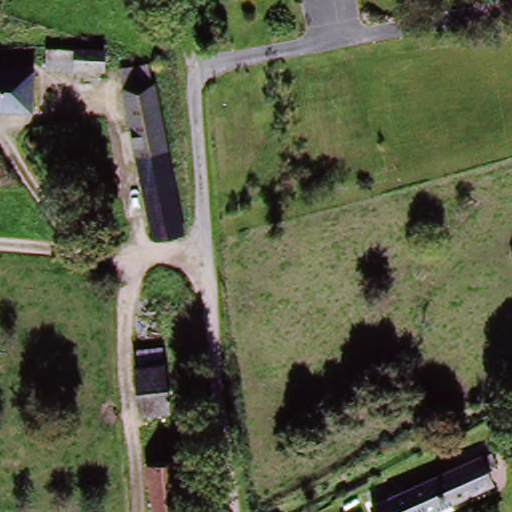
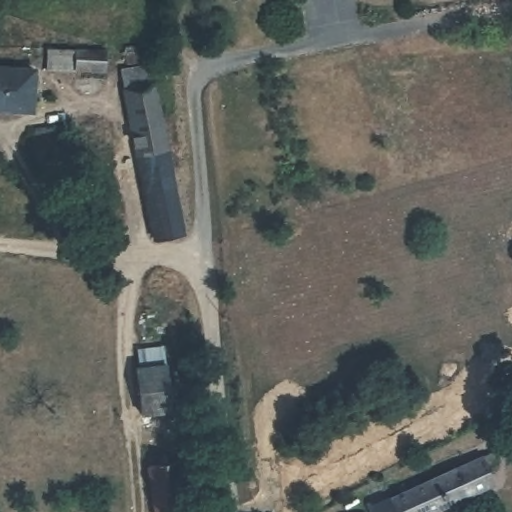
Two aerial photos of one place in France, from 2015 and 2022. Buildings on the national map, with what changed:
unchanged [(48,67),(49,51),(100,53),(99,70),(48,67)]
unchanged [(0,66),(35,67),(34,107),(0,105),(0,66)]
unchanged [(151,232),(119,90),(151,81),(184,224),(151,232)]
unchanged [(142,399),(131,352),(158,346),(170,392),(142,399)]
unchanged [(449,512),(390,512),(386,505),(477,462),(491,493),(449,512)]
unchanged [(151,470),(179,467),(185,512),(157,512),(151,470)]

